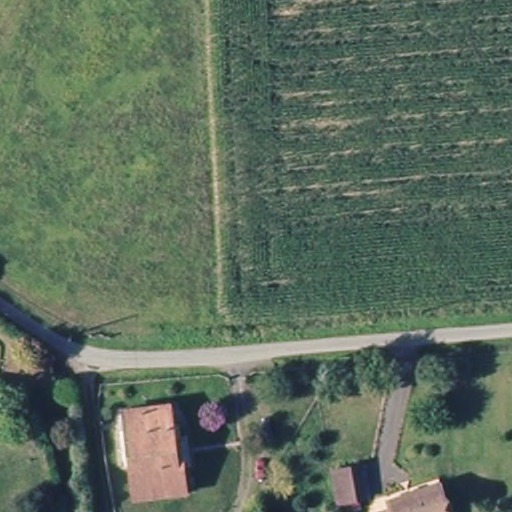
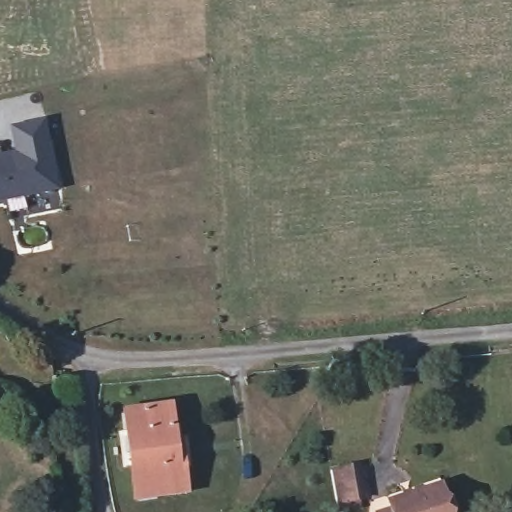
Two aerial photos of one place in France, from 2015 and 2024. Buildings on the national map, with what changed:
new [(19,151),(14,126),(45,120),(59,188),(0,200),(0,155),(19,151)]
unchanged [(129,410),(167,406),(169,440),(179,439),(183,491),(134,496),(129,410)]
unchanged [(338,476),(360,472),(364,504),(360,504),(360,512),(345,512),(338,477),(338,476)]
unchanged [(395,504),(392,496),(442,479),(452,512),(377,512),(376,510),(395,504)]

